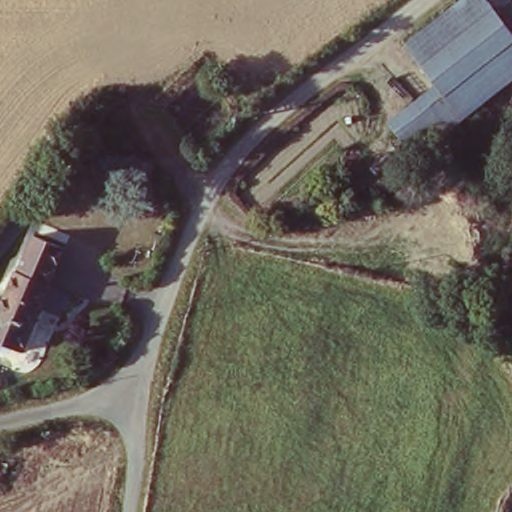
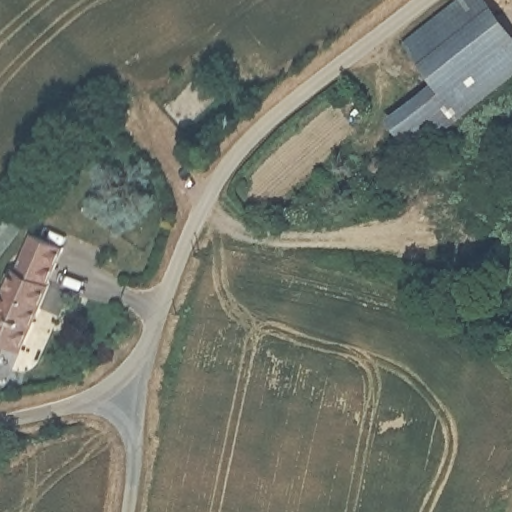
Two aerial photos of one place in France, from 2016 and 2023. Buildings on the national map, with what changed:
unchanged [(489,0),(512,33),(512,85),(461,119),(431,82),(402,45),(463,0),(489,0)]
unchanged [(431,82),(461,119),(436,136),(403,105),(431,82)]
unchanged [(380,125),(403,105),(436,136),(423,154),(416,163),(380,125)]
unchanged [(42,284),(46,286),(20,353),(0,346),(0,295),(9,270),(14,271),(25,235),(55,246),(42,284)]

